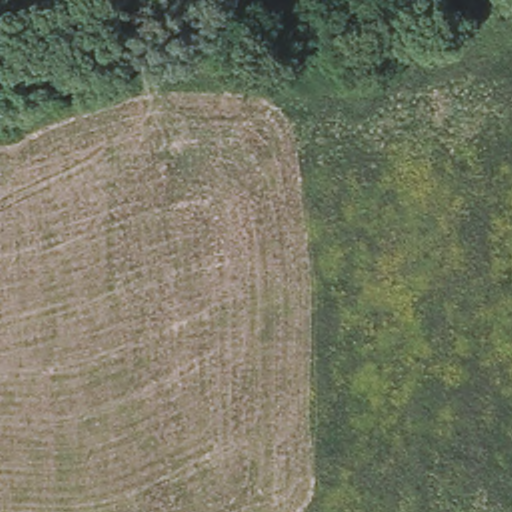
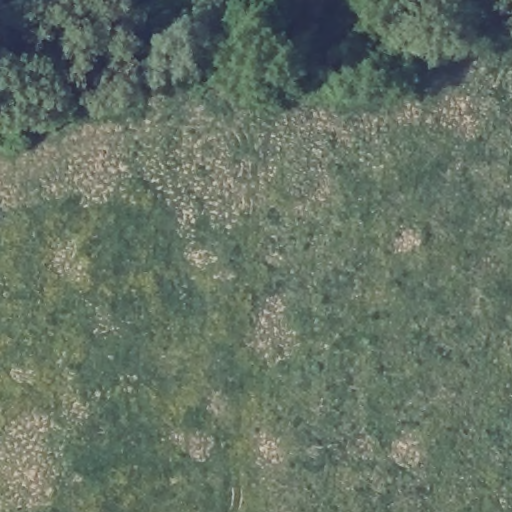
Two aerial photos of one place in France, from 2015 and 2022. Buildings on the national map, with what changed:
[]

